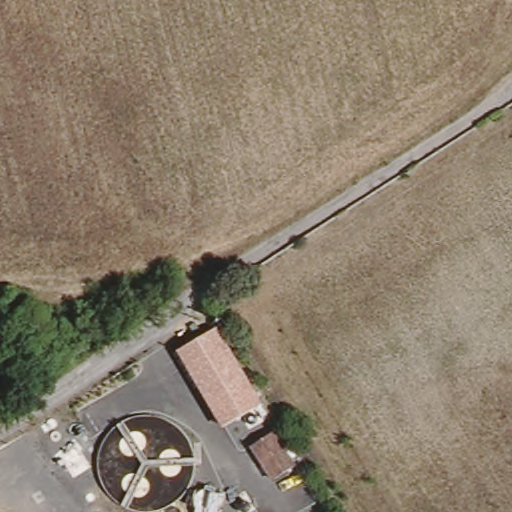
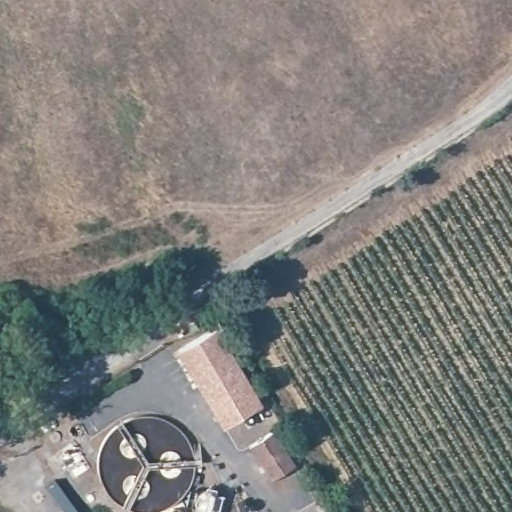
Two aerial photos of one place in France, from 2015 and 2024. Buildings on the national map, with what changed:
unchanged [(54,324),(35,345),(0,315),(0,309),(12,291),(54,324)]
unchanged [(263,400),(222,427),(177,350),(218,327),(263,400)]
unchanged [(273,427),(298,465),(277,479),(253,440),(273,427)]

